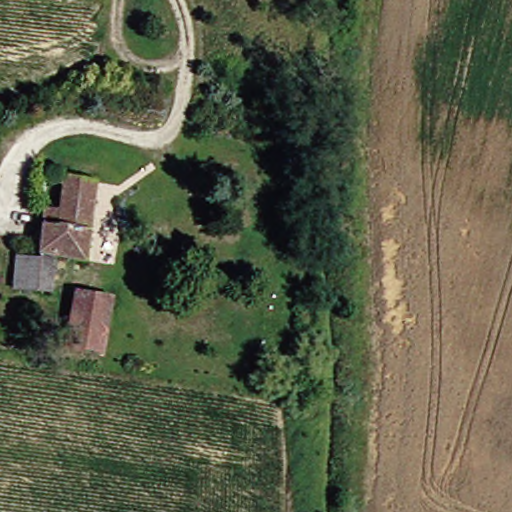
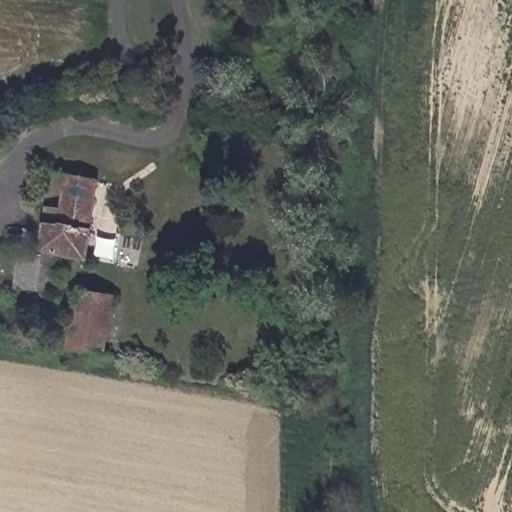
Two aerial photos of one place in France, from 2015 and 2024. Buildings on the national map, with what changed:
unchanged [(101,182),(97,221),(96,225),(96,227),(38,224),(38,222),(38,219),(38,215),(40,211),(69,212),(71,180),(101,182)]
unchanged [(96,227),(96,230),(96,233),(93,263),(63,262),(59,293),(22,291),(26,260),(33,260),(36,230),(36,227),(38,224),(96,227)]
unchanged [(109,295),(103,349),(74,347),(80,293),(109,295)]

